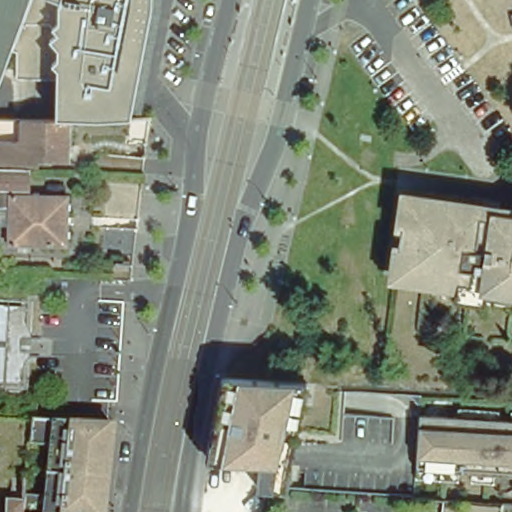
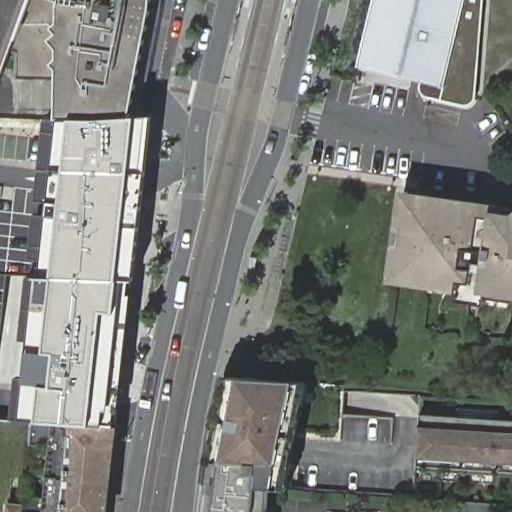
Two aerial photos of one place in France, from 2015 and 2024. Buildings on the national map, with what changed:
unchanged [(0,64),(0,0),(23,0),(5,48),(0,64)]
unchanged [(153,0),(152,11),(130,115),(57,116),(57,81),(17,77),(19,52),(5,48),(23,0),(153,0)]
new [(376,0),(464,0),(443,86),(359,66),(376,0)]
new [(475,100),(471,104),(468,105),(429,97),(424,95),(420,91),(420,87),(421,81),(443,86),(464,0),(483,0),(475,93),(475,100)]
new [(108,423),(89,422),(63,421),(38,420),(12,420),(16,376),(25,376),(29,340),(21,339),(28,275),(40,275),(42,259),(31,258),(36,213),(47,215),(48,201),(37,200),(45,117),(57,116),(70,116),(130,115),(152,115),(134,280),(118,423),(108,423)]
demolished [(71,125),(69,165),(0,163),(0,154),(13,154),(21,154),(21,143),(22,124),(71,125)]
demolished [(10,199),(0,199),(0,173),(25,173),(28,173),(28,199),(68,200),(66,250),(8,248),(10,211),(10,199)]
unchanged [(485,302),(455,298),(457,283),(393,274),(400,222),(403,195),(512,210),(512,291),(487,287),(485,302)]
demolished [(117,267),(118,256),(132,257),(131,268),(117,267)]
demolished [(24,310),(19,380),(0,379),(0,308),(24,310)]
unchanged [(306,382),(285,490),(251,486),(256,465),(207,462),(223,376),(306,382)]
unchanged [(512,421),(512,475),(417,468),(421,415),(512,421)]
unchanged [(101,480),(97,512),(18,512),(18,508),(18,507),(21,478),(21,475),(22,469),(25,441),(60,445),(63,421),(108,423),(101,480)]
unchanged [(207,462),(256,465),(251,486),(285,490),(283,512),(201,512),(207,462)]
unchanged [(9,477),(21,478),(18,507),(18,508),(18,512),(6,512),(9,477)]
unchanged [(466,502),(500,505),(512,506),(512,512),(465,512),(466,502)]

